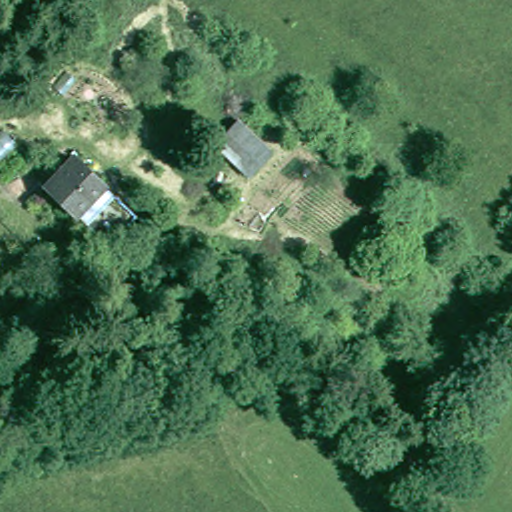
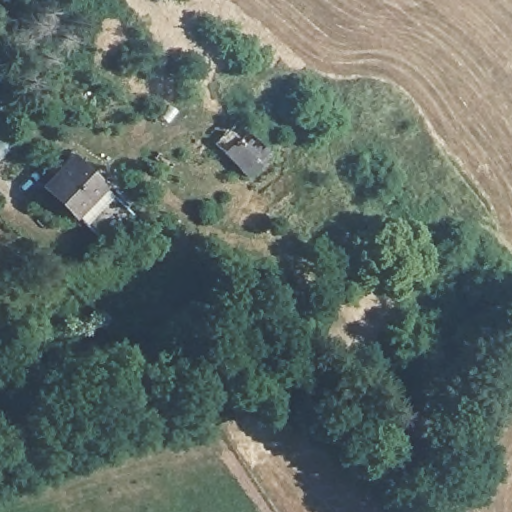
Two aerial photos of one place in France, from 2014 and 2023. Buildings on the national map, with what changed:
unchanged [(237,121),(272,152),(250,177),(215,144),(237,121)]
unchanged [(59,143),(120,202),(93,231),(32,172),(59,143)]

